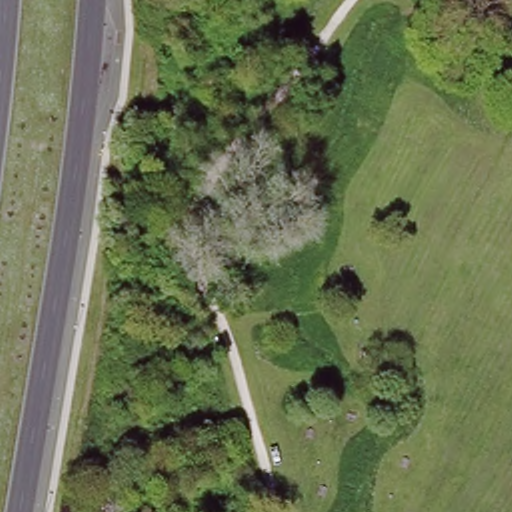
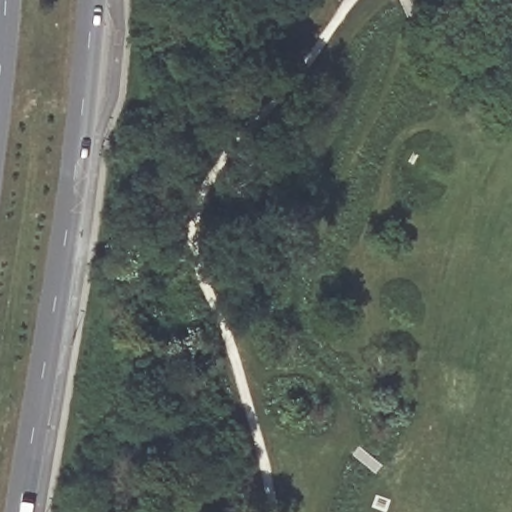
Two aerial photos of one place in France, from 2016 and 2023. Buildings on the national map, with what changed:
unchanged [(507,80),(475,59),(483,47),(512,67),(512,73),(507,80)]

